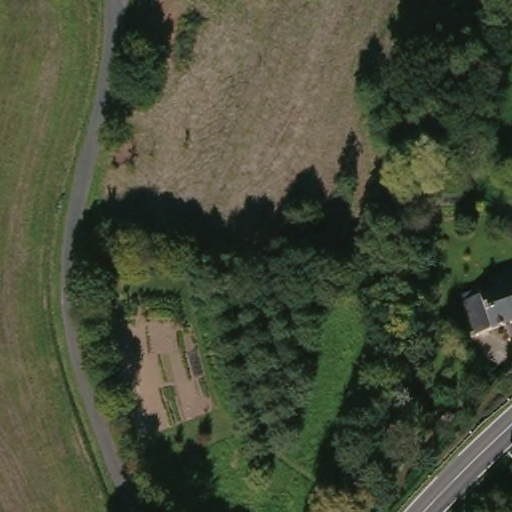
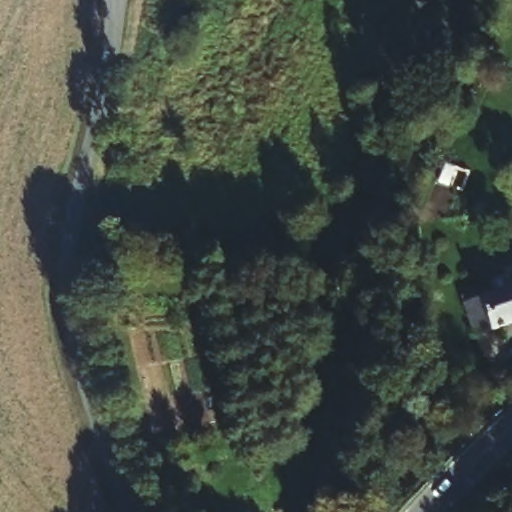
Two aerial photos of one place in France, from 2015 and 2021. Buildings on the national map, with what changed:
unchanged [(493,300),(490,289),(506,284),(512,282),(512,326),(486,335),(472,339),(462,310),(493,300)]

